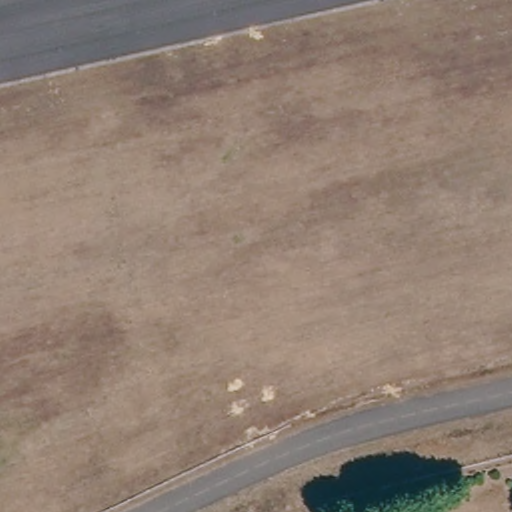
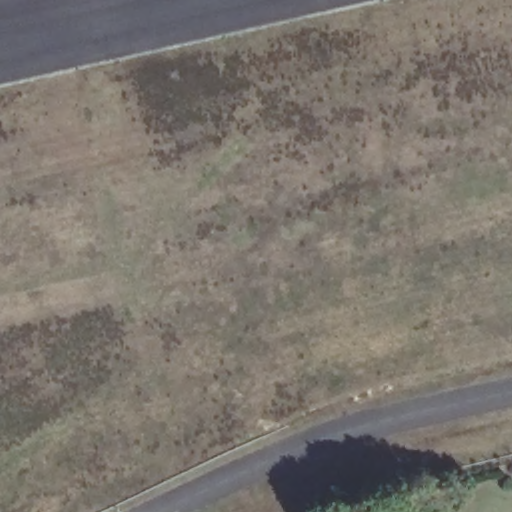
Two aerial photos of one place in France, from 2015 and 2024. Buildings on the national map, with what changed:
unchanged [(367,504),(367,512),(346,512),(346,506),(367,504)]

